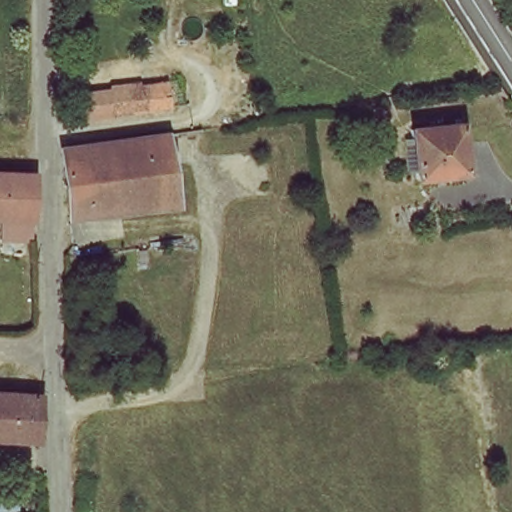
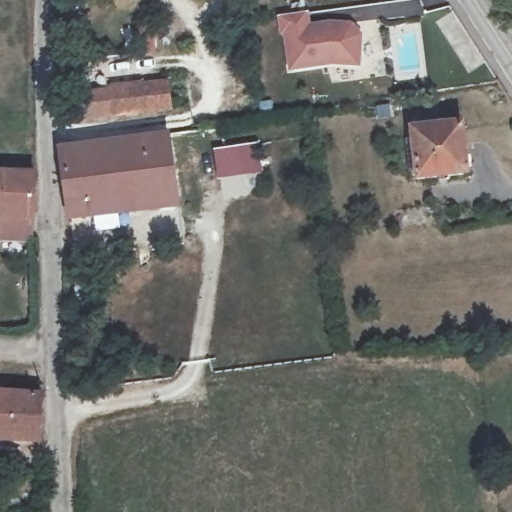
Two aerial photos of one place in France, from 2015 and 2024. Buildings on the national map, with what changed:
new [(331,66),(288,72),(283,34),(279,35),(277,17),(308,12),(310,24),(330,21),(352,23),(361,35),(359,67),(331,66)]
unchanged [(95,92),(94,87),(152,82),(155,108),(55,120),(53,96),(95,92)]
unchanged [(465,167),(416,173),(412,124),(459,118),(465,167)]
unchanged [(163,131),(176,202),(66,212),(61,171),(61,144),(163,131)]
unchanged [(38,224),(0,223),(0,168),(38,169),(38,224)]
unchanged [(48,393),(42,443),(0,442),(0,390),(48,393)]
unchanged [(16,491),(16,512),(0,512),(0,492),(16,491)]

